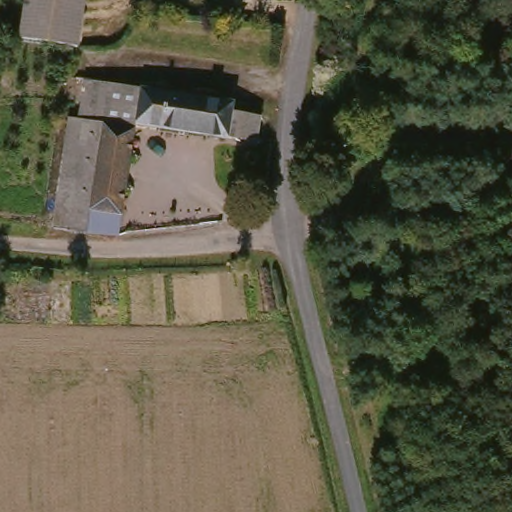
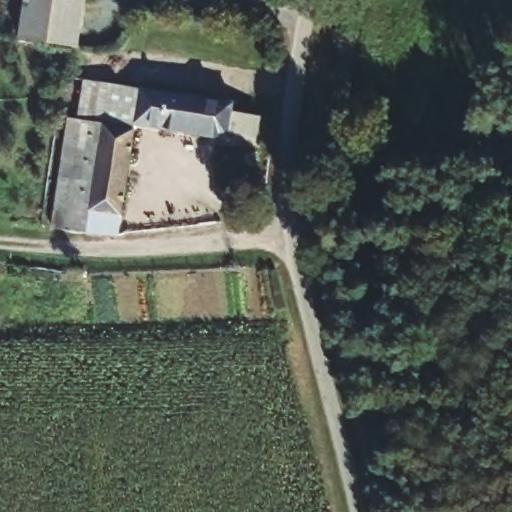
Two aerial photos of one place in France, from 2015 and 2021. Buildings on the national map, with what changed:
unchanged [(18,39),(25,0),(85,0),(77,48),(18,39)]
unchanged [(258,144),(226,143),(134,135),(116,235),(47,231),(64,120),(72,123),(81,78),(229,103),(230,111),(262,116),(258,144)]

